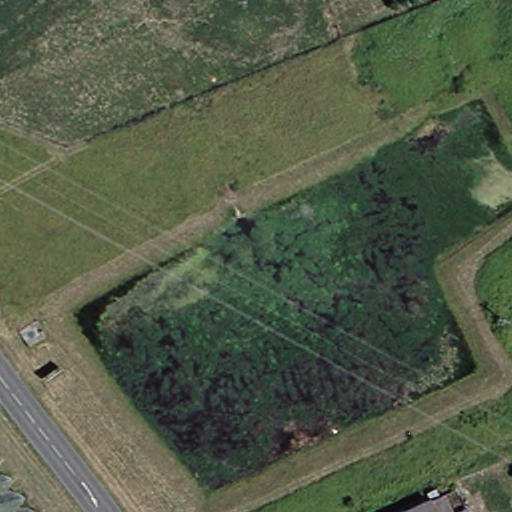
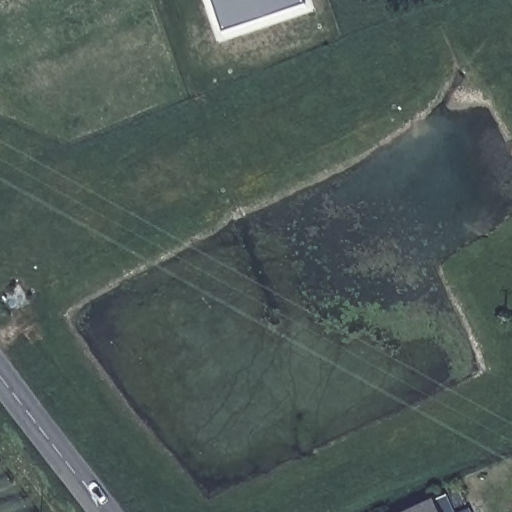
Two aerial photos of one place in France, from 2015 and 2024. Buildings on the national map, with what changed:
new [(304,6),(224,32),(211,0),(302,0),(304,6)]
unchanged [(453,492),(458,502),(452,506),(455,512),(410,512),(437,499),(453,492)]
unchanged [(476,512),(465,512),(473,507),(476,512)]

